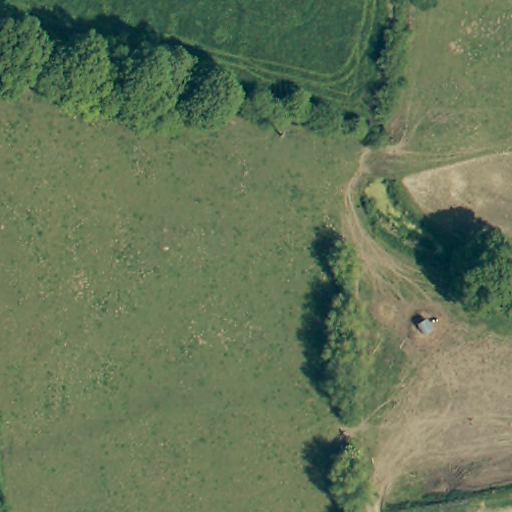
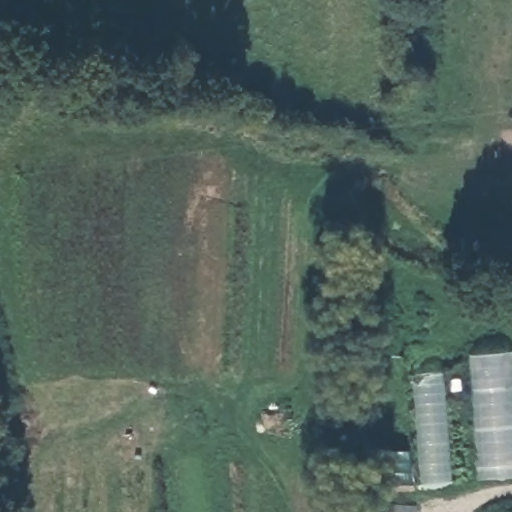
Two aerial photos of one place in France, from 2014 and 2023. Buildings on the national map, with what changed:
new [(421,484),(411,354),(441,352),(450,481),(421,484)]
new [(471,355),(511,352),(512,358),(512,477),(478,479),(471,355)]

